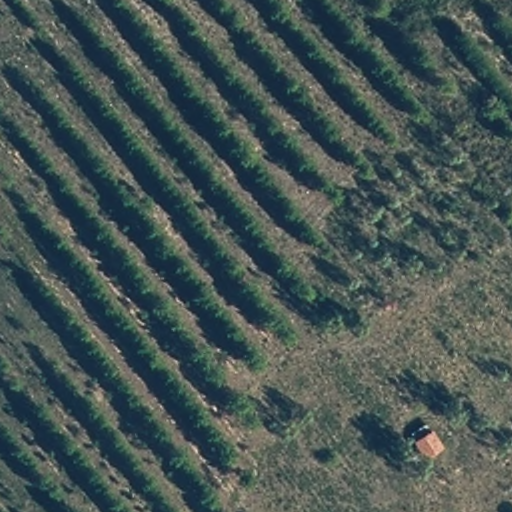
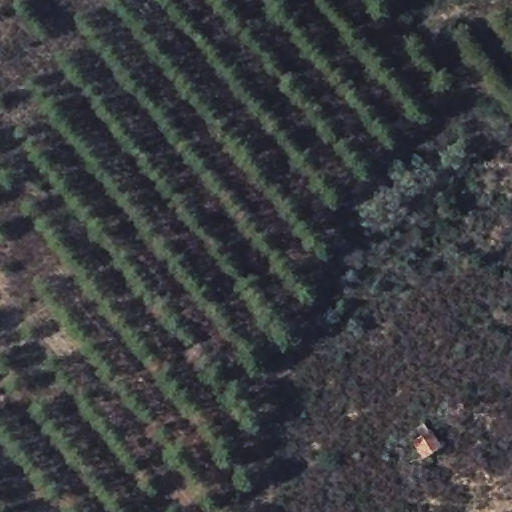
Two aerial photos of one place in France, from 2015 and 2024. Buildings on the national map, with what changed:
unchanged [(442,445),(422,460),(409,439),(430,428),(442,445)]

